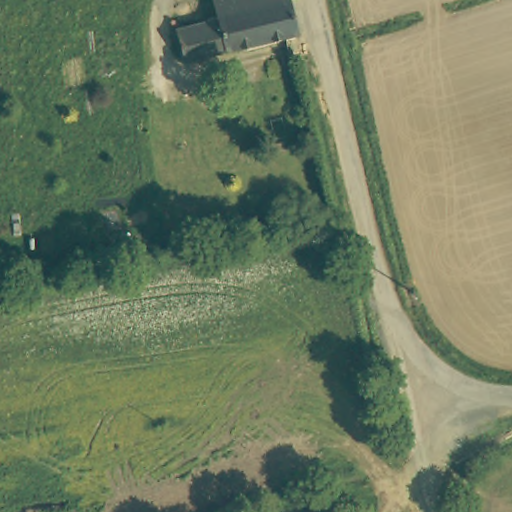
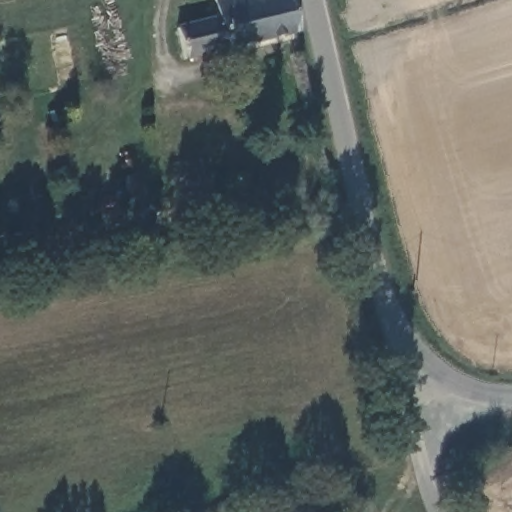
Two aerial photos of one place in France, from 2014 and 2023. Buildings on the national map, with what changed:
unchanged [(214,0),(290,0),(297,31),(187,60),(179,29),(219,18),(214,0)]

